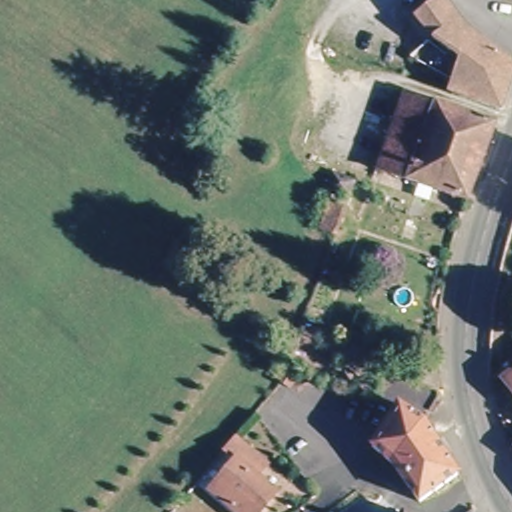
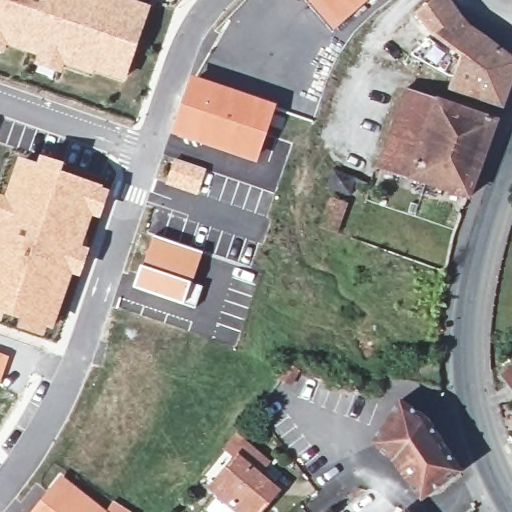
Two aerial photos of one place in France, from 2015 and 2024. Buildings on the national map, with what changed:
new [(92,71),(91,75),(64,66),(60,74),(33,65),(37,55),(7,45),(3,54),(0,53),(0,0),(134,0),(151,6),(124,81),(92,71)]
new [(305,0),(367,0),(332,31),(305,0)]
unchanged [(455,81),(421,62),(413,56),(432,39),(440,45),(443,41),(430,28),(418,15),(435,0),(451,0),(467,22),(505,52),(512,59),(512,84),(503,108),(452,90),(455,81)]
new [(190,74),(276,104),(256,164),(170,133),(190,74)]
unchanged [(376,169),(388,135),(395,116),(404,91),(493,123),(466,198),(376,169)]
new [(3,195),(17,156),(35,163),(38,155),(64,163),(61,171),(110,189),(99,220),(92,218),(82,245),(90,248),(79,278),(72,276),(48,339),(0,322),(0,194),(3,195)]
new [(174,157),(207,169),(197,196),(165,184),(174,157)]
unchanged [(350,198),(325,190),(331,172),(356,183),(350,198)]
unchanged [(320,231),(330,202),(345,207),(334,236),(320,231)]
new [(151,235),(202,252),(192,281),(202,286),(194,309),(130,288),(151,235)]
new [(10,356),(0,375),(0,352),(10,356)]
unchanged [(512,382),(500,367),(512,358),(512,382)]
unchanged [(403,383),(404,380),(407,363),(435,373),(436,394),(403,383)]
unchanged [(291,391),(280,386),(285,370),(297,374),(291,391)]
unchanged [(340,382),(354,387),(352,391),(350,396),(337,390),(340,382)]
unchanged [(423,505),(397,473),(400,469),(377,446),(403,407),(427,422),(462,474),(423,505)]
unchanged [(512,431),(512,432),(511,432),(512,431)]
unchanged [(267,507),(262,512),(239,512),(214,490),(240,460),(228,449),(240,435),(252,446),(272,463),(261,476),(280,492),(267,507)]
new [(60,474),(105,509),(112,500),(132,512),(29,512),(60,474)]
unchanged [(405,511),(406,512),(403,512),(405,511)]

